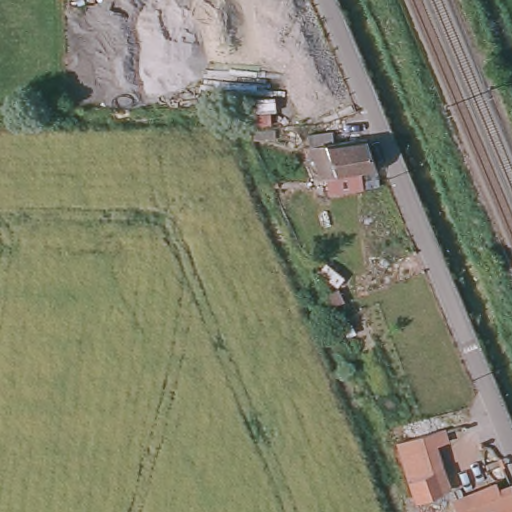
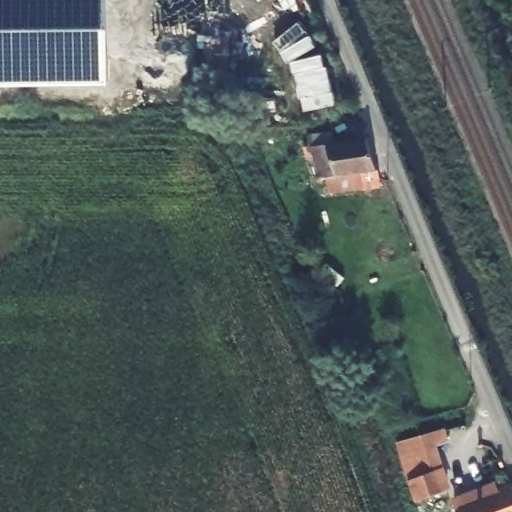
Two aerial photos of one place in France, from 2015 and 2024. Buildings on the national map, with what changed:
new [(107,84),(0,85),(0,0),(106,0),(107,84)]
unchanged [(363,179),(365,186),(331,192),(328,177),(321,178),(316,155),(311,157),(309,145),(314,144),(311,132),(335,127),(337,141),(368,135),(378,168),(380,176),(363,179)]
new [(414,501),(406,481),(395,442),(445,428),(449,442),(437,446),(445,467),(451,488),(414,501)]
demolished [(433,482),(415,488),(400,446),(417,439),(433,482)]
unchanged [(496,489),(498,496),(512,491),(512,512),(459,512),(455,502),(496,489)]

